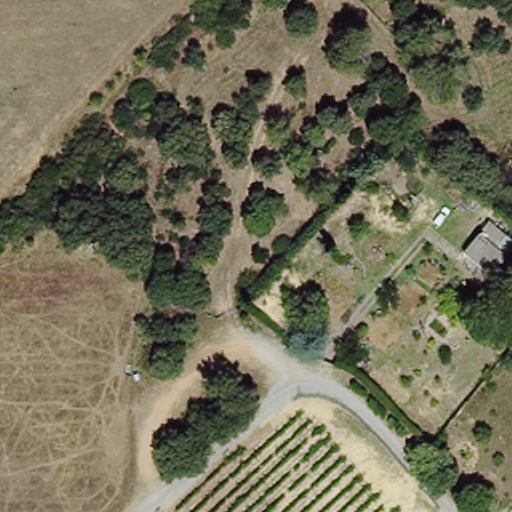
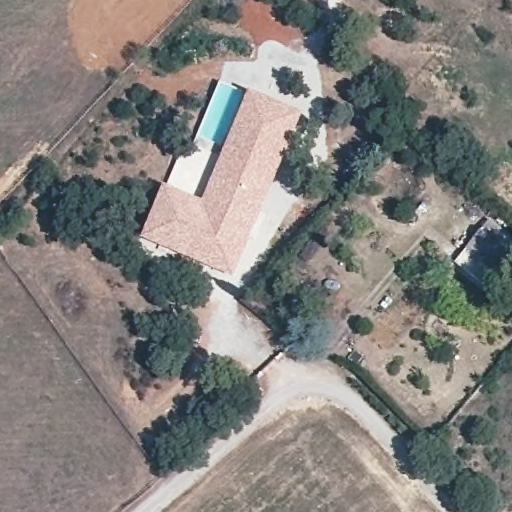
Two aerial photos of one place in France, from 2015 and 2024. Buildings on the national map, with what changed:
new [(165,183),(193,195),(202,199),(249,92),(302,114),(233,278),(140,240),(165,183)]
unchanged [(512,237),(512,253),(492,275),(464,250),(490,218),(512,237)]

